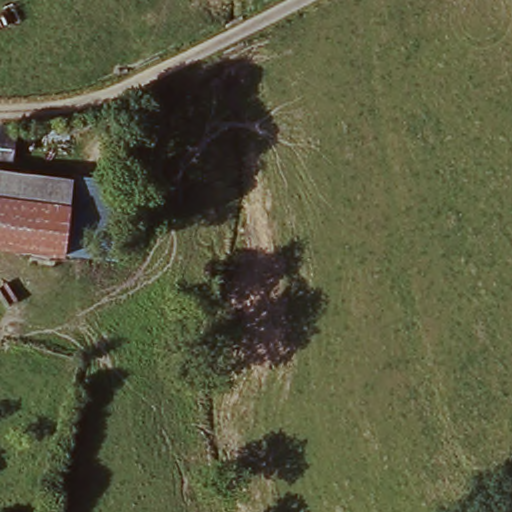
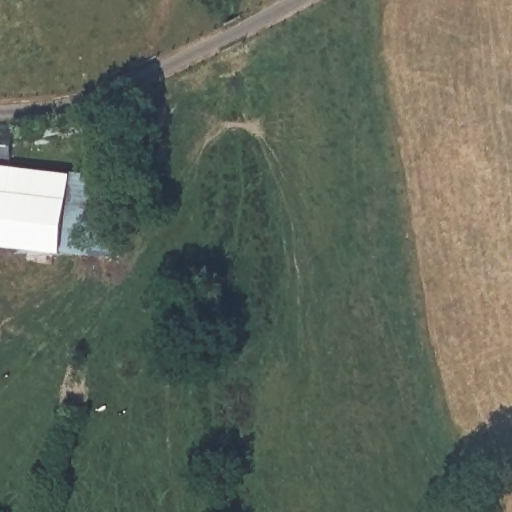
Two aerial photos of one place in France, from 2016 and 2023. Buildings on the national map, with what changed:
unchanged [(0,161),(0,130),(16,131),(15,162),(0,161)]
unchanged [(73,208),(0,199),(0,174),(75,181),(73,208)]
unchanged [(73,208),(75,181),(118,188),(114,259),(69,256),(73,208)]
unchanged [(69,256),(0,250),(0,199),(73,208),(69,256)]

